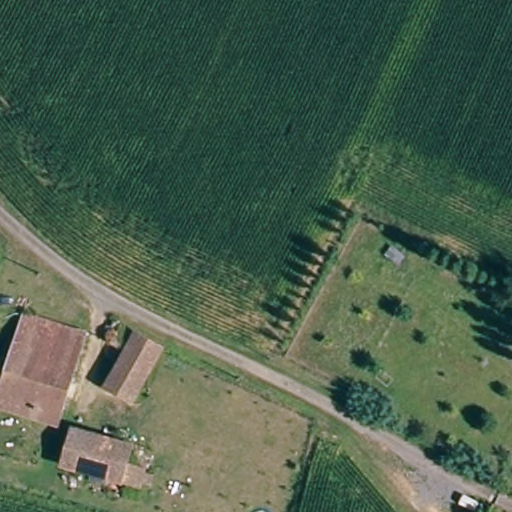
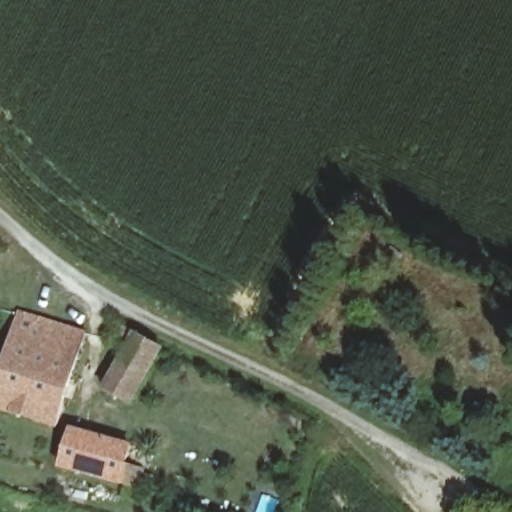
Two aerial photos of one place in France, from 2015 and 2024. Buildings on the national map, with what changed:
unchanged [(57,423),(0,407),(0,394),(22,321),(82,340),(57,423)]
unchanged [(164,347),(135,401),(108,384),(125,352),(113,343),(120,327),(164,347)]
unchanged [(122,448),(145,454),(145,459),(143,469),(151,473),(149,488),(140,487),(139,491),(65,468),(71,433),(122,448)]

